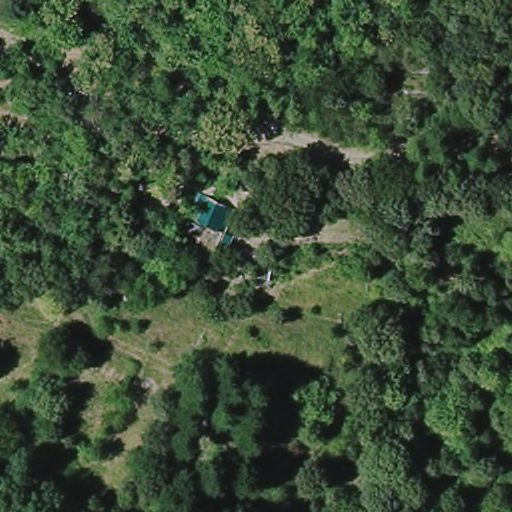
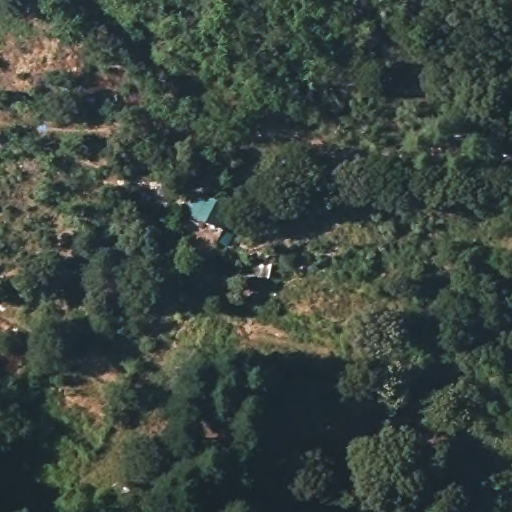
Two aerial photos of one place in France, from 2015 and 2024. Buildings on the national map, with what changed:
unchanged [(228,222),(195,215),(200,199),(233,205),(228,222)]

